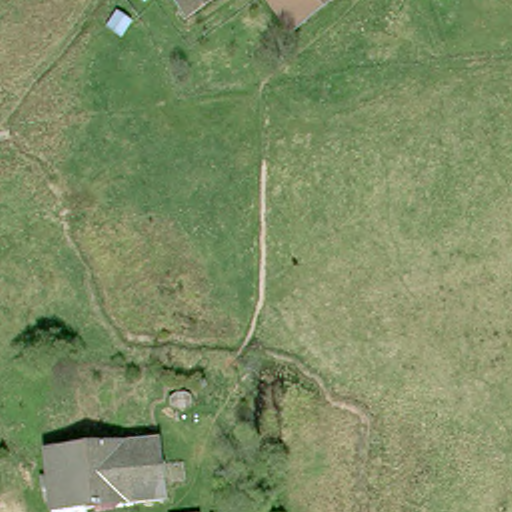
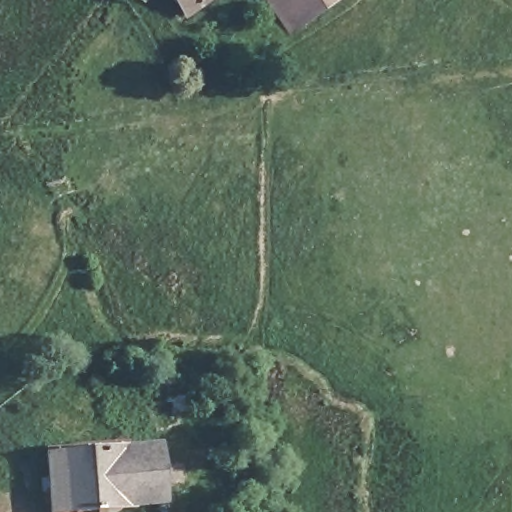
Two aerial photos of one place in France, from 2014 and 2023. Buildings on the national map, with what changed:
unchanged [(171,0),(199,0),(179,13),(171,0)]
unchanged [(290,37),(266,0),(346,0),(290,37)]
unchanged [(49,449),(128,439),(131,445),(162,441),(165,496),(134,499),(135,503),(87,508),(87,512),(59,512),(55,512),(49,449)]

